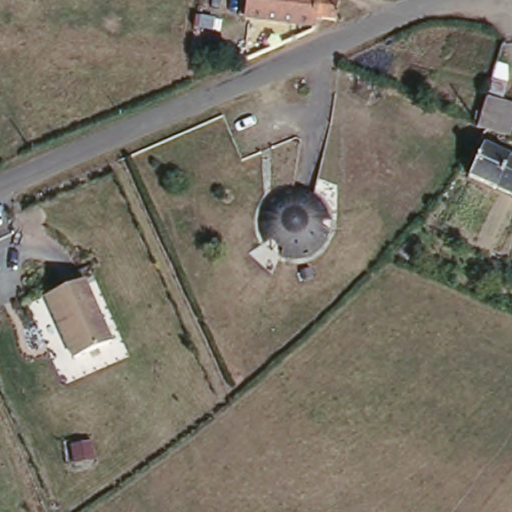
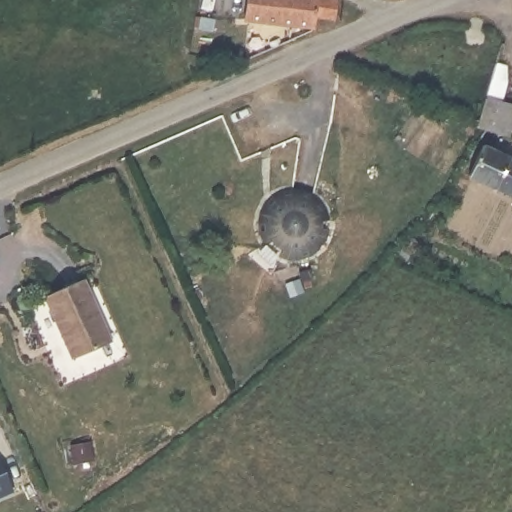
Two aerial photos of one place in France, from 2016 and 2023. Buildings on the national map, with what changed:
unchanged [(313,9),(311,22),(245,14),(247,0),(331,0),(330,10),(313,9)]
unchanged [(512,118),(505,136),(484,130),(479,127),(489,95),(512,104),(512,118)]
unchanged [(483,135),(512,148),(512,189),(469,170),(483,135)]
unchanged [(294,182),(296,182),(299,183),(301,184),(303,185),(306,186),(308,187),(310,188),(312,190),(314,191),(316,193),(318,195),(318,197),(320,199),(321,201),(322,204),(323,205),(324,208),(324,210),(325,213),(325,215),(325,218),(325,220),(325,223),(324,225),(324,228),(323,230),(322,232),(321,235),(319,237),(318,239),(316,241),(314,243),(313,245),(311,246),(309,248),(306,249),(304,250),(302,251),(299,252),(297,253),(294,254),(292,254),(289,254),(287,254),(284,254),(282,254),(279,253),(277,252),(275,251),(272,250),(270,250),(268,247),(266,246),(264,245),(262,242),(261,241),(259,239),(258,237),(256,235),(255,232),(254,230),(254,227),(253,225),(253,222),(253,220),(252,218),(253,215),(253,213),(253,210),(254,208),(255,205),(256,203),(257,201),(259,199),(260,196),(262,195),(264,193),(265,191),(267,190),(269,189),(272,187),(274,186),(276,185),(279,184),(281,184),(284,183),(286,182),(289,182),(291,182),(294,182)]
unchanged [(44,295),(81,280),(104,345),(66,358),(44,295)]
new [(14,493),(0,499),(0,462),(14,493)]

